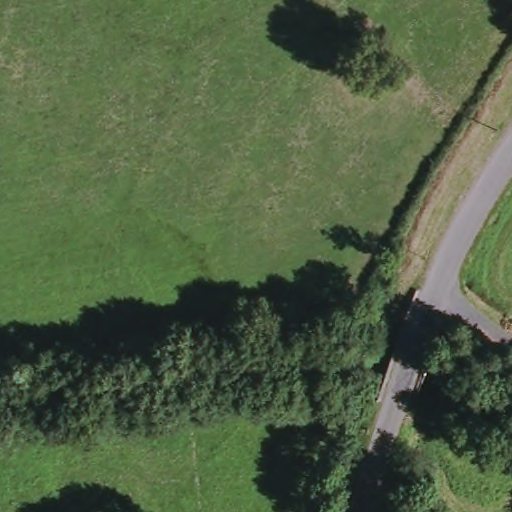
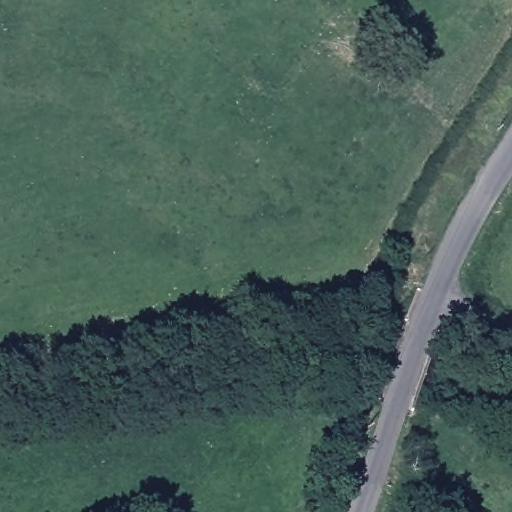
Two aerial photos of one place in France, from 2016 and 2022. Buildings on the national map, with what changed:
[]

